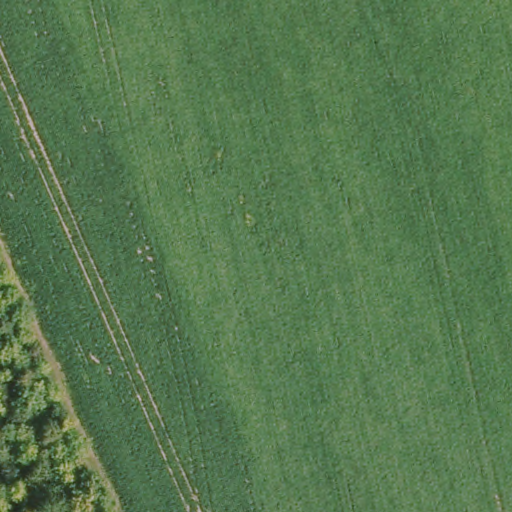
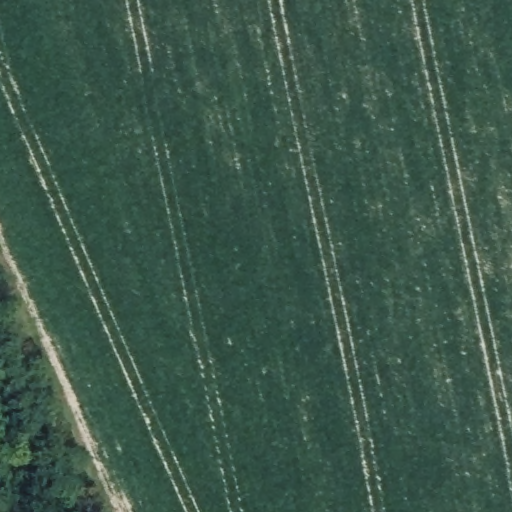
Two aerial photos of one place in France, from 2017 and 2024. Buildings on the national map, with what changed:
unchanged [(12,471),(17,485),(0,492),(0,476),(12,471)]

